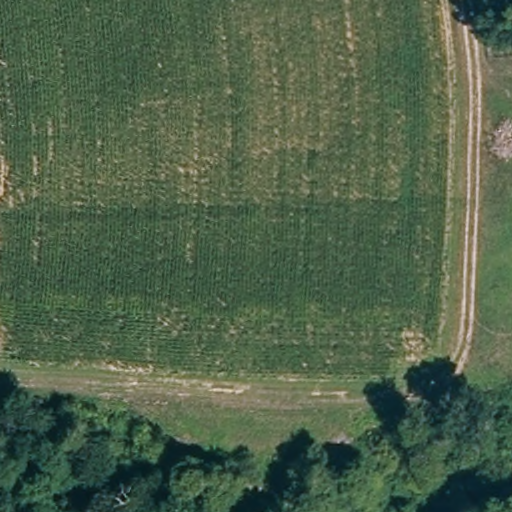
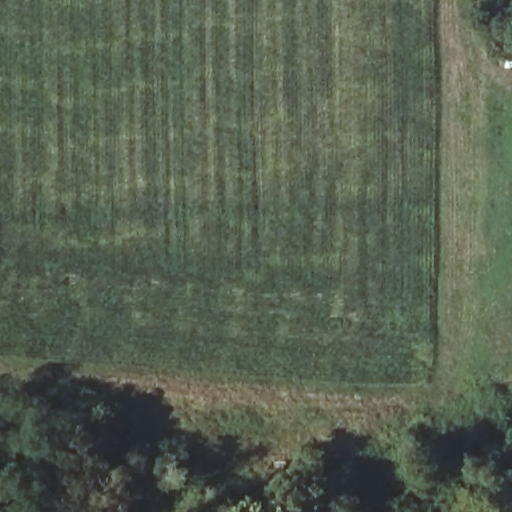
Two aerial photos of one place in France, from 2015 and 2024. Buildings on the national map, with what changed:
[]

